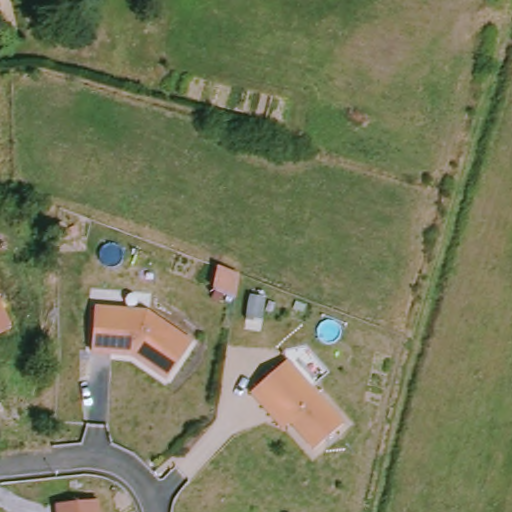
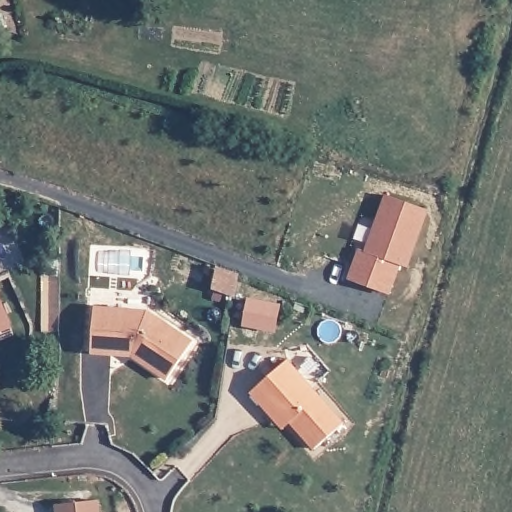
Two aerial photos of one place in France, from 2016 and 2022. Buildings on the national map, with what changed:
new [(427,213),(407,270),(399,266),(389,294),(352,280),(360,252),(369,255),(388,199),(427,213)]
unchanged [(0,333),(0,305),(10,327),(0,333)]
unchanged [(97,307),(149,312),(193,343),(168,379),(133,355),(133,351),(113,349),(112,353),(93,351),(97,307)]
unchanged [(249,391),(284,358),(342,420),(314,446),(289,420),(282,426),(269,413),(249,391)]
unchanged [(53,505),(93,501),(94,512),(53,512),(53,505)]

